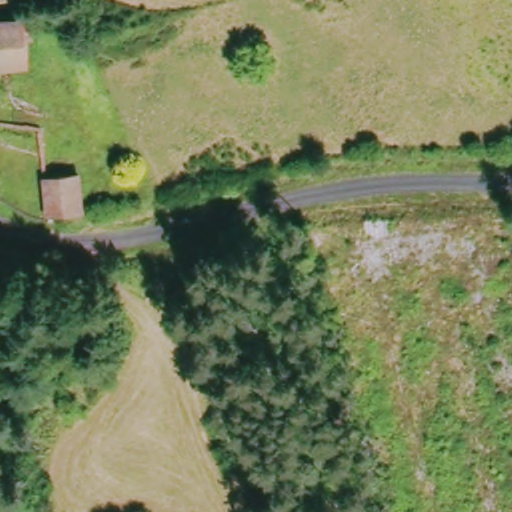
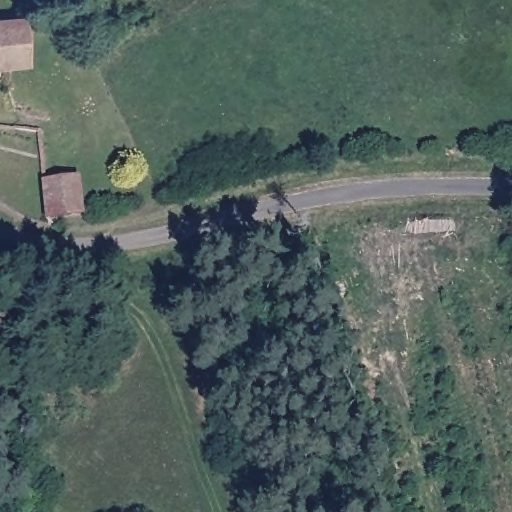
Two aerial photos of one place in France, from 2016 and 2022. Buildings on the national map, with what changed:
unchanged [(18,20),(23,65),(0,67),(0,22),(18,20)]
unchanged [(40,183),(75,180),(78,215),(42,221),(40,183)]

